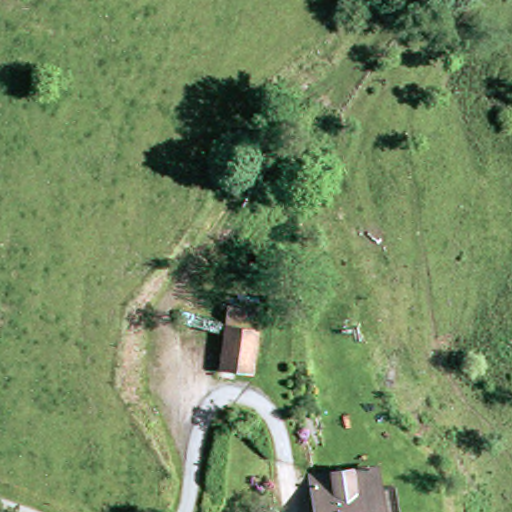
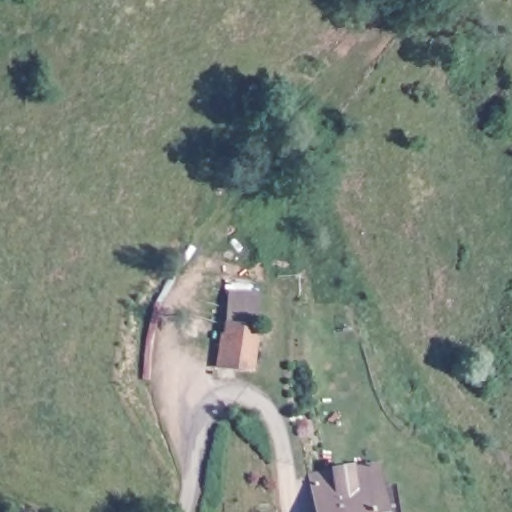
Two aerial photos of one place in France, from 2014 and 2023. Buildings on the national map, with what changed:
unchanged [(252,303),(264,356),(229,366),(217,331),(212,314),(219,312),(252,303)]
unchanged [(382,512),(318,512),(312,477),(374,467),(382,512)]

